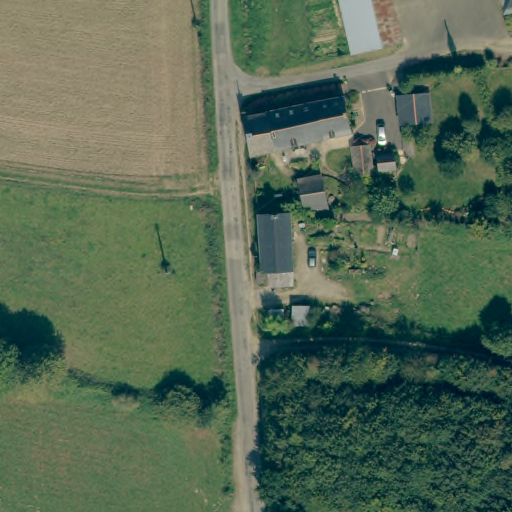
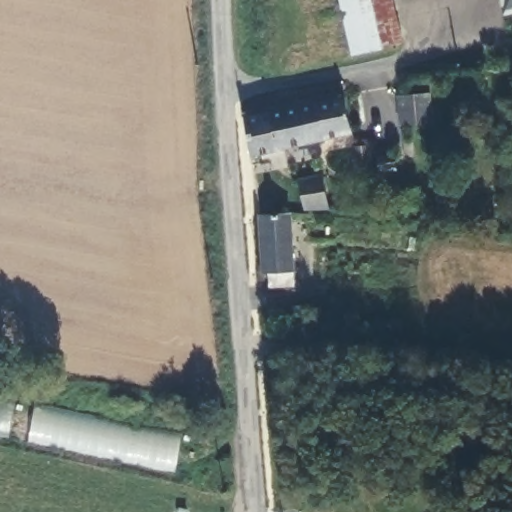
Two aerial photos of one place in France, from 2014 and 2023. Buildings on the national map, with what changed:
unchanged [(404,43),(356,54),(346,0),(395,0),(404,43)]
unchanged [(512,8),(499,11),(496,0),(512,0),(512,8)]
unchanged [(264,111),(317,103),(345,99),(350,136),(324,140),(271,148),(251,152),(246,113),(264,111)]
unchanged [(404,99),(434,99),(434,129),(404,129),(404,99)]
unchanged [(372,146),(374,171),(374,175),(355,175),(355,174),(353,147),(372,146)]
unchanged [(378,159),(395,158),(396,173),(379,174),(378,159)]
unchanged [(301,181),(325,177),(329,201),(305,204),(301,181)]
unchanged [(299,276),(259,278),(257,211),(296,208),(299,276)]
new [(174,473),(0,436),(0,394),(180,432),(174,473)]

